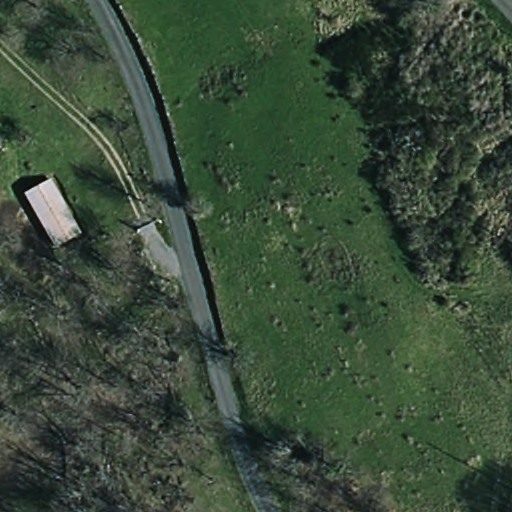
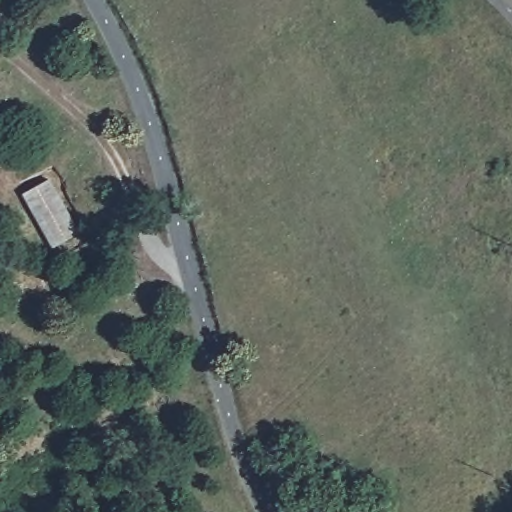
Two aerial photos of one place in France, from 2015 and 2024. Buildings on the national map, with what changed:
unchanged [(82,234),(56,249),(24,194),(50,179),(82,234)]

